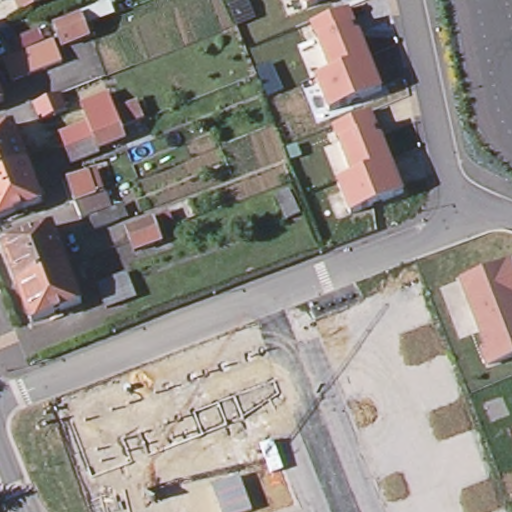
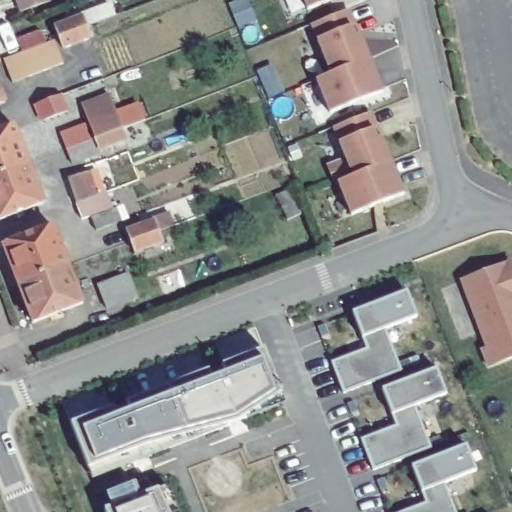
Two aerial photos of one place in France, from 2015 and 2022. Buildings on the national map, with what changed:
unchanged [(5,2),(4,0),(10,0),(5,2)]
unchanged [(50,1),(20,11),(17,0),(50,0),(50,1)]
unchanged [(330,2),(309,10),(305,0),(329,0),(330,2)]
unchanged [(310,28),(345,16),(353,41),(358,40),(366,64),(327,77),(310,28)]
unchanged [(9,55),(60,35),(68,60),(17,79),(8,55),(9,55)]
unchanged [(378,96),(357,104),(356,102),(347,105),(348,107),(325,116),(312,82),(320,80),(327,77),(366,64),(378,96)]
unchanged [(0,106),(0,90),(5,104),(0,106)]
unchanged [(90,100),(117,90),(130,126),(128,126),(132,138),(106,147),(107,150),(78,160),(73,145),(102,135),(90,100)]
unchanged [(38,105),(62,95),(68,112),(42,122),(36,105),(38,105)]
unchanged [(345,124),(363,117),(372,142),(377,141),(386,165),(347,179),(329,130),(345,124)]
unchanged [(0,133),(15,127),(28,164),(0,175),(0,133)]
unchanged [(44,204),(0,221),(0,175),(28,164),(44,204)]
unchanged [(127,214),(101,225),(96,212),(88,215),(81,200),(77,201),(67,175),(93,165),(103,191),(105,190),(111,205),(121,201),(127,214)]
unchanged [(334,185),(347,179),(386,165),(399,197),(378,205),(377,203),(367,206),(368,209),(345,218),(332,185),(334,185)]
unchanged [(301,216),(285,222),(275,197),(290,190),(301,216)]
unchanged [(136,252),(135,252),(132,242),(128,231),(155,220),(158,232),(162,242),(136,252)]
unchanged [(18,285),(3,249),(55,229),(69,266),(18,285)]
unchanged [(487,352),(492,350),(463,284),(512,263),(512,361),(494,368),(487,352)]
unchanged [(83,304),(33,325),(18,285),(69,266),(83,304)]
unchanged [(128,274),(136,298),(107,310),(98,284),(127,273),(128,274)]
new [(330,365),(365,351),(352,317),(403,295),(412,319),(380,332),(395,370),(340,392),(330,365)]
new [(281,392),(285,404),(92,476),(89,466),(73,423),(113,408),(117,416),(131,410),(128,402),(209,372),(213,378),(226,373),(222,365),(263,350),(281,392)]
new [(360,441),(395,427),(382,393),(432,372),(442,395),(410,408),(424,446),(369,468),(360,441)]
new [(411,470),(461,448),(471,471),(439,485),(449,512),(402,512),(423,503),(411,470)]
new [(157,488),(162,512),(103,512),(102,510),(157,488)]

